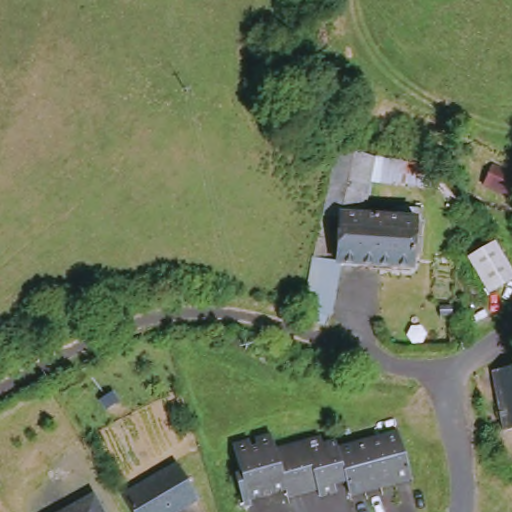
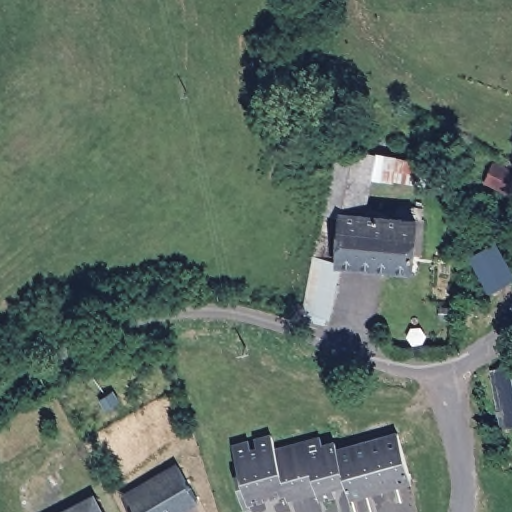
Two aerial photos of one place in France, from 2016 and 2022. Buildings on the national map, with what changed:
unchanged [(345,146),(351,153),(380,159),(372,219),(405,223),(407,213),(431,216),(428,229),(420,227),(412,277),(343,266),(335,317),(304,314),(340,131),(345,146)]
unchanged [(473,263),(501,248),(512,268),(512,285),(489,296),(473,263)]
unchanged [(497,373),(512,370),(512,429),(505,430),(497,373)]
unchanged [(248,457),(257,454),(255,445),(270,440),(275,456),(320,441),(323,449),(332,446),(335,450),(395,430),(410,476),(395,482),(392,474),(365,483),(367,493),(353,497),(346,475),(340,477),(342,483),(334,485),(336,492),(320,498),(316,490),(286,501),(285,495),(253,504),(255,511),(250,512),(245,512),(235,482),(240,480),(231,453),(245,448),(248,457)]
unchanged [(202,507),(191,512),(135,512),(127,497),(185,468),(202,507)]
unchanged [(95,504),(99,512),(78,512),(95,504)]

